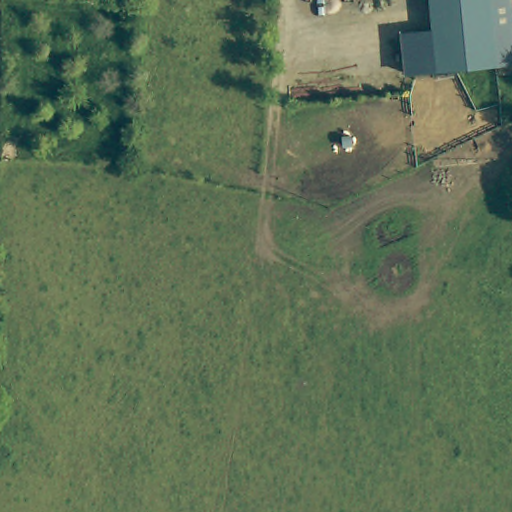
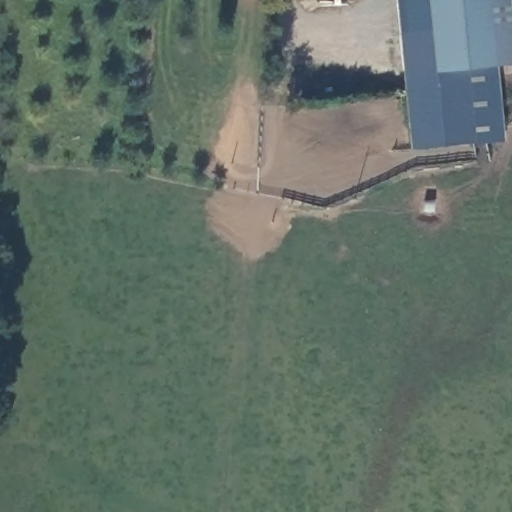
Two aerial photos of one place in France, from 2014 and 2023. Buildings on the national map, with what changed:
unchanged [(512,17),(512,60),(468,66),(435,69),(429,0),(510,0),(512,17)]
new [(435,69),(468,66),(512,60),(512,138),(476,142),(411,148),(399,32),(432,29),(435,69)]

